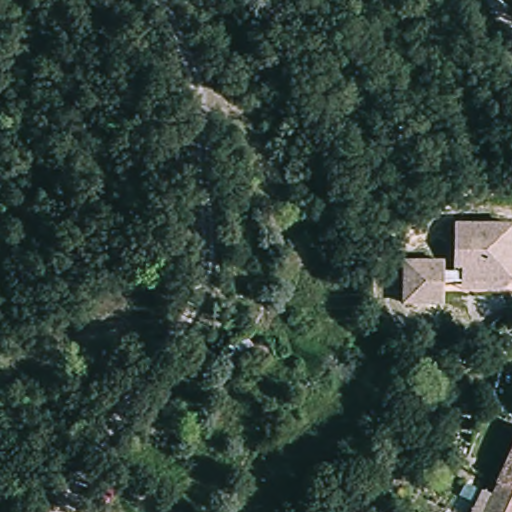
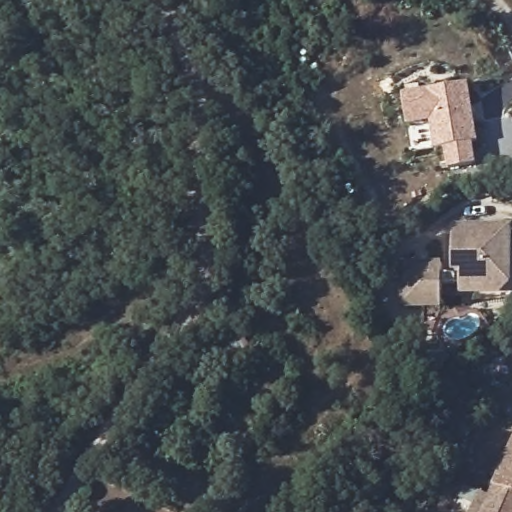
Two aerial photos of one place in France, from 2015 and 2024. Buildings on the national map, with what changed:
new [(473,143),(477,163),(448,169),(444,147),(434,149),(430,122),(406,127),(402,92),(469,84),(479,141),(473,143)]
unchanged [(441,284),(442,307),(402,309),(400,267),(441,264),(441,274),(450,274),(448,247),(447,226),(508,222),(508,233),(512,236),(512,292),(511,292),(489,294),(486,290),(459,292),(458,282),(441,284)]
unchanged [(512,512),(496,512),(512,479),(512,512)]

